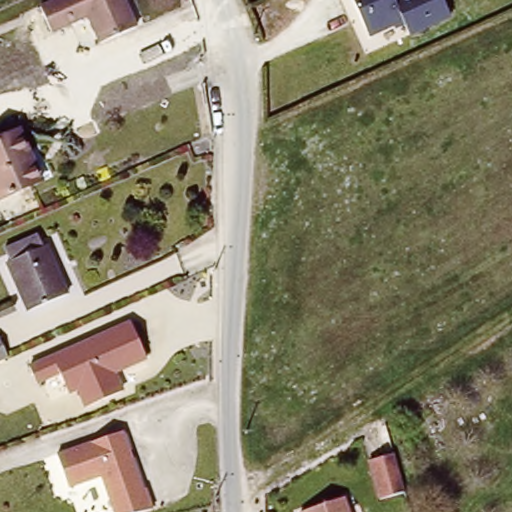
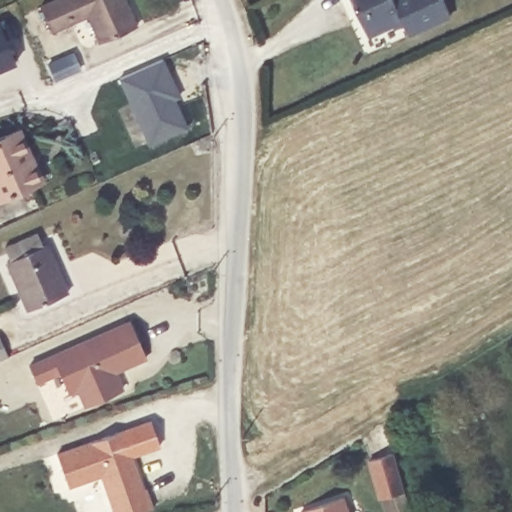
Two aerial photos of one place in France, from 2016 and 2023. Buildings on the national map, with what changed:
unchanged [(125,0),(137,28),(101,45),(85,12),(70,19),(72,25),(51,34),(40,9),(62,0),(125,0)]
unchanged [(405,24),(369,39),(351,0),(398,0),(398,1),(401,0),(444,0),(453,20),(412,39),(405,24)]
new [(0,70),(0,26),(0,25),(15,64),(0,70)]
new [(163,59),(182,98),(174,101),(186,129),(147,145),(119,79),(163,59)]
unchanged [(40,188),(5,204),(0,195),(0,145),(22,134),(35,161),(46,185),(40,188)]
unchanged [(35,235),(41,248),(45,247),(67,296),(28,312),(6,264),(9,263),(3,250),(35,235)]
unchanged [(144,361),(115,375),(122,393),(83,411),(75,393),(66,396),(58,376),(34,386),(26,367),(128,325),(144,361)]
unchanged [(9,359),(0,363),(0,339),(9,359)]
unchanged [(143,492),(145,491),(151,507),(137,512),(112,512),(100,479),(64,490),(53,456),(122,433),(143,492)]
unchanged [(409,493),(385,499),(374,462),(398,455),(409,493)]
unchanged [(340,499),(344,512),(304,512),(340,499)]

